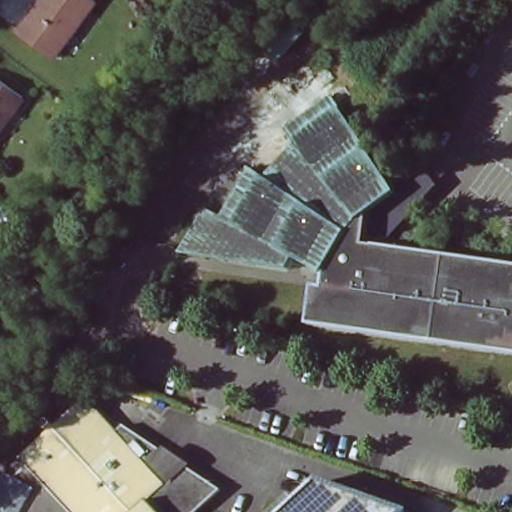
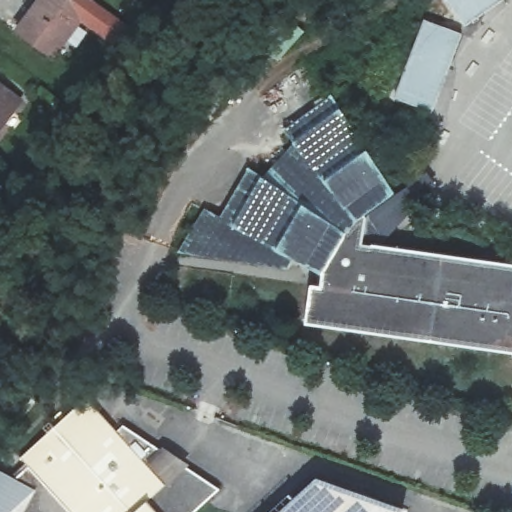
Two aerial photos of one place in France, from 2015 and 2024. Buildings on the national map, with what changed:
unchanged [(15,30),(37,0),(90,0),(48,55),(15,30)]
new [(446,0),(502,0),(464,26),(446,0)]
new [(423,17),(462,34),(431,113),(393,99),(423,17)]
unchanged [(302,319),(308,281),(314,281),(317,269),(292,255),(284,265),(173,246),(201,201),(217,211),(247,163),(262,172),(293,132),(280,121),(319,79),(402,171),(371,205),(368,230),(385,234),(512,255),(512,354),(302,319)]
unchanged [(0,131),(0,80),(25,99),(0,131)]
unchanged [(14,477),(28,463),(19,453),(82,395),(114,430),(120,423),(157,448),(159,445),(189,462),(184,468),(217,488),(192,512),(0,512),(0,476),(3,471),(14,477)]
unchanged [(0,470),(3,471),(0,476),(0,470)]
unchanged [(315,475),(409,508),(405,512),(275,512),(315,475)]

